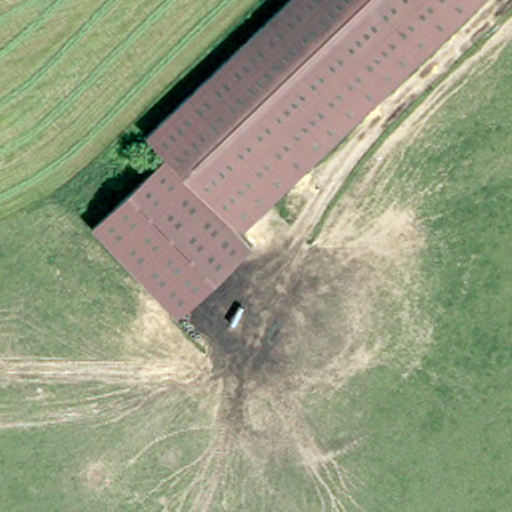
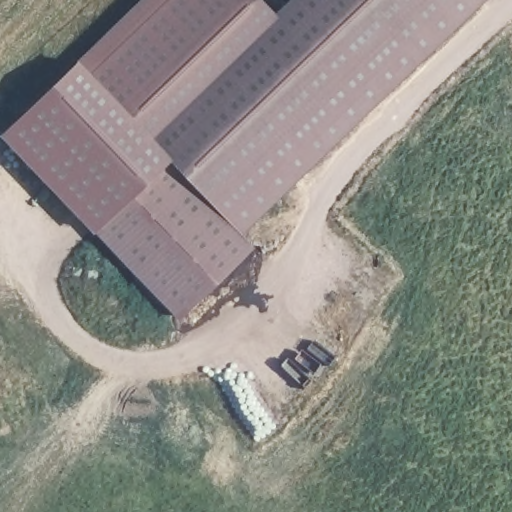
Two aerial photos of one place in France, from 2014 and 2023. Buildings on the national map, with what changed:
new [(169,154),(96,225),(91,230),(0,135),(0,133),(76,58),(138,0),(262,0),(273,11),(148,132),(169,154)]
unchanged [(243,224),(253,238),(178,310),(96,225),(169,154),(148,132),(284,0),(472,0),(243,224)]

